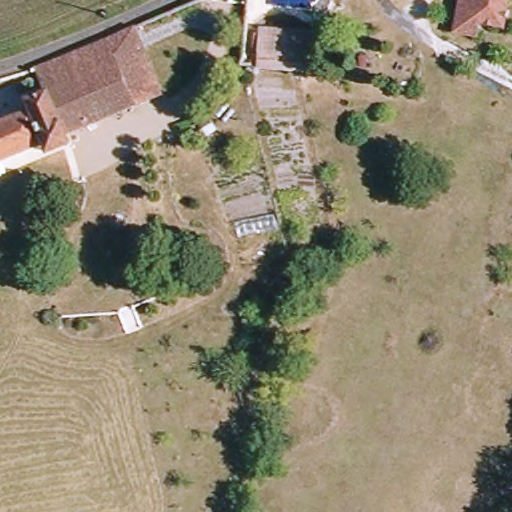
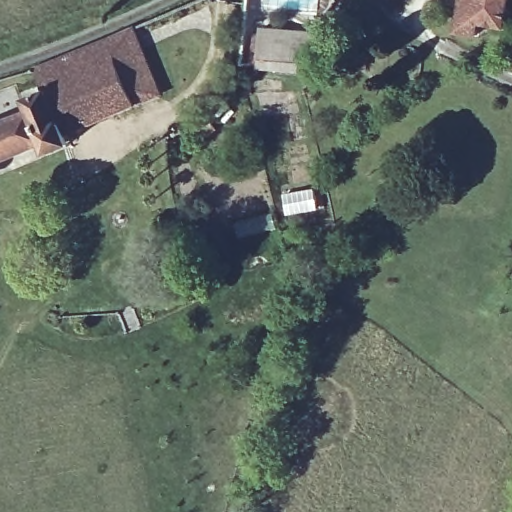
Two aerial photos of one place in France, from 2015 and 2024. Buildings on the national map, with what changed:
unchanged [(478,0),(512,0),(512,15),(510,25),(475,17),(478,0)]
unchanged [(259,34),(265,34),(266,29),(316,31),(315,69),(264,66),(258,66),(259,34)]
unchanged [(138,35),(164,98),(143,107),(115,44),(138,35)]
unchanged [(40,115),(38,105),(54,97),(44,71),(115,44),(143,107),(70,136),(74,147),(56,154),(52,142),(0,163),(0,131),(40,115)]

